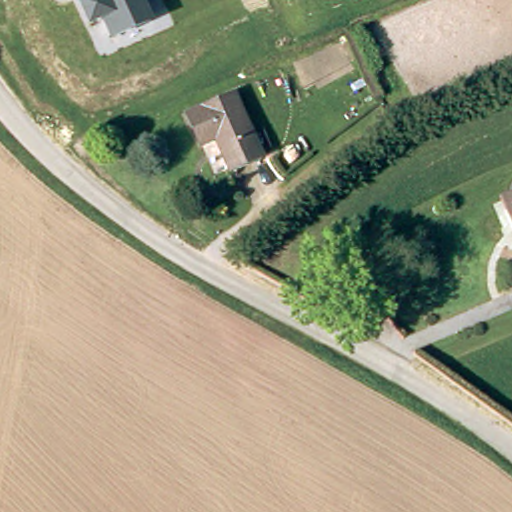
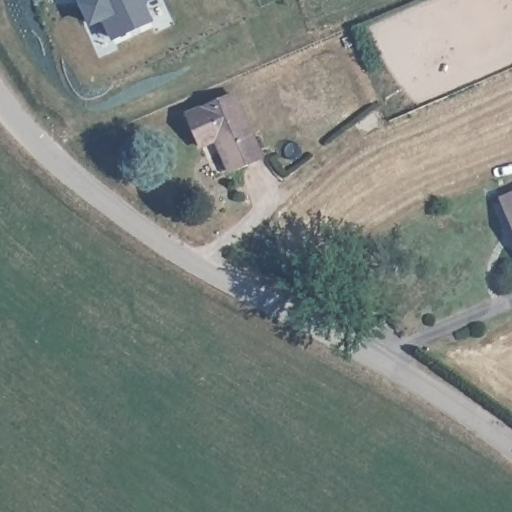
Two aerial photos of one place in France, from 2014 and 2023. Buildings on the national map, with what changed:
unchanged [(79,2),(84,0),(150,0),(148,7),(154,22),(110,41),(102,22),(89,27),(79,2)]
unchanged [(273,143),(260,148),(262,154),(234,166),(220,135),(205,142),(192,111),(236,92),(253,133),(267,127),(273,143)]
unchanged [(510,227),(505,211),(500,199),(512,195),(512,227),(510,227)]

